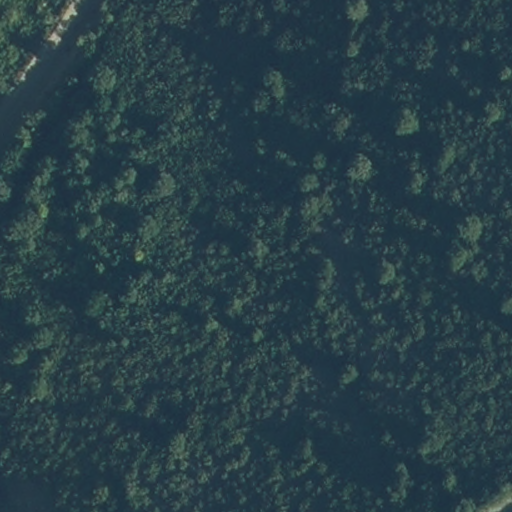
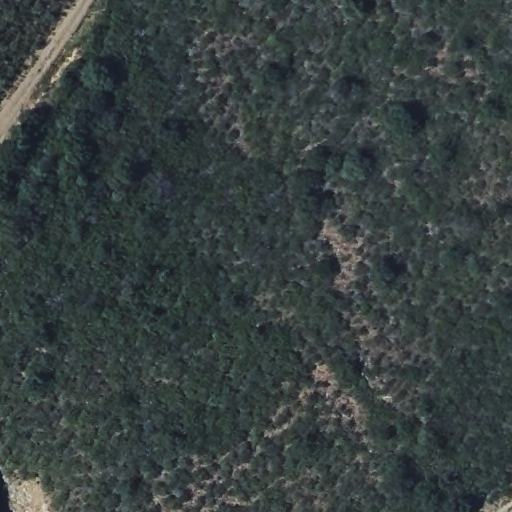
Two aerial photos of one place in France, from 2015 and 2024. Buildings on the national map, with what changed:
[]

